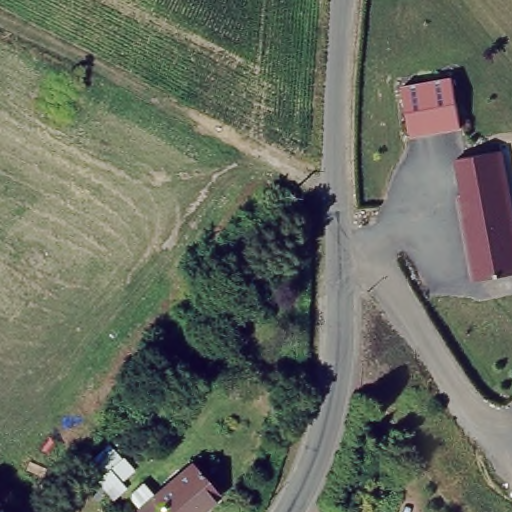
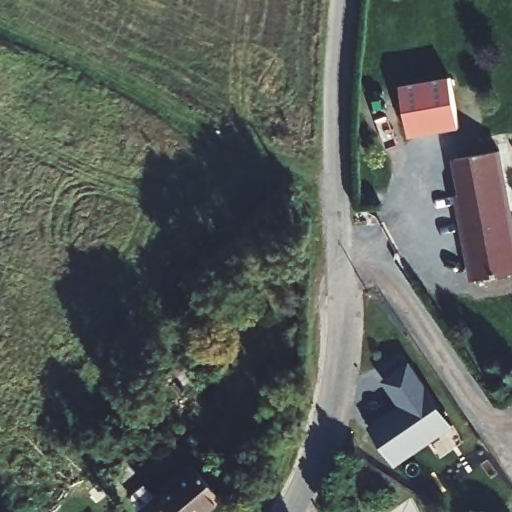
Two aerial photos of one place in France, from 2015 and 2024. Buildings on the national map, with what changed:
unchanged [(401,83),(454,75),(462,125),(409,133),(401,83)]
unchanged [(456,194),(460,193),(455,158),(504,150),(512,203),(512,273),(471,280),(456,194)]
new [(437,436),(440,439),(437,440),(436,437),(395,464),(369,427),(400,406),(382,381),(410,362),(452,427),(437,436)]
unchanged [(102,482),(127,459),(137,470),(123,483),(130,491),(119,501),(102,482)]
unchanged [(223,496),(205,512),(146,512),(144,510),(145,509),(137,499),(137,491),(149,481),(161,496),(197,464),(223,496)]

